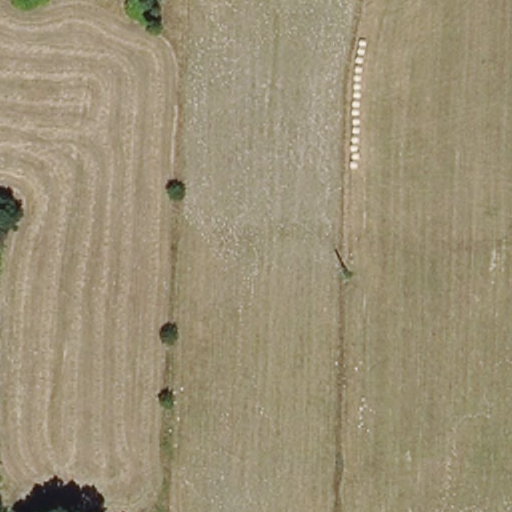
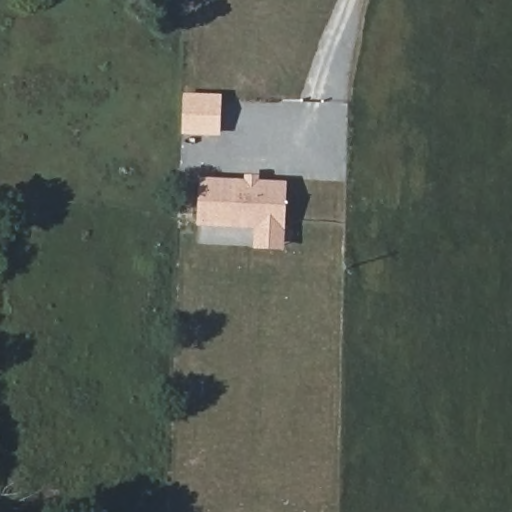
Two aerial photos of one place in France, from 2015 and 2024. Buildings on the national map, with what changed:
new [(182,136),(184,94),(222,95),(221,137),(182,136)]
new [(284,251),(253,249),(254,230),(197,227),(199,178),(287,182),(285,232),(284,251)]

